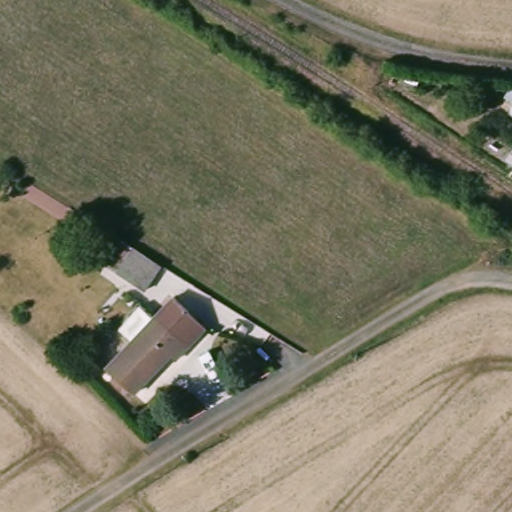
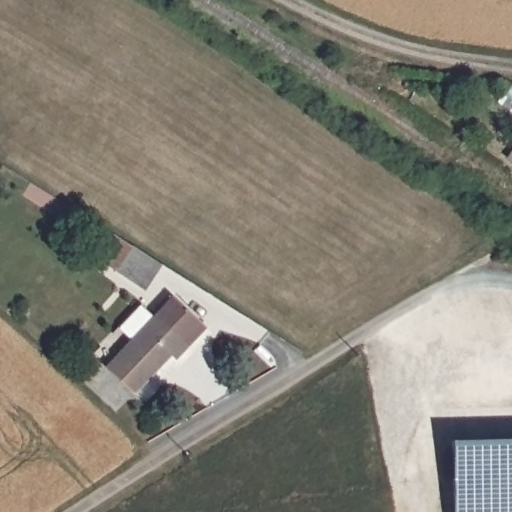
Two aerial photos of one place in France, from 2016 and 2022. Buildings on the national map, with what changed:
unchanged [(502,111),(512,96),(512,117),(502,111)]
unchanged [(154,258),(139,284),(107,266),(124,240),(154,258)]
unchanged [(120,329),(141,306),(154,317),(173,297),(209,330),(174,364),(166,358),(130,395),(104,368),(131,340),(120,329)]
new [(512,438),(512,512),(458,512),(455,440),(512,438)]

